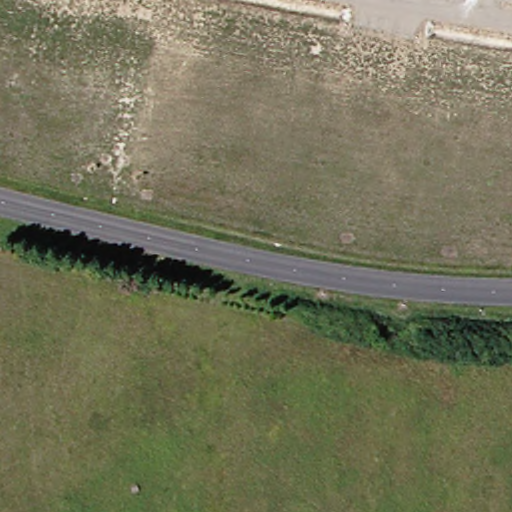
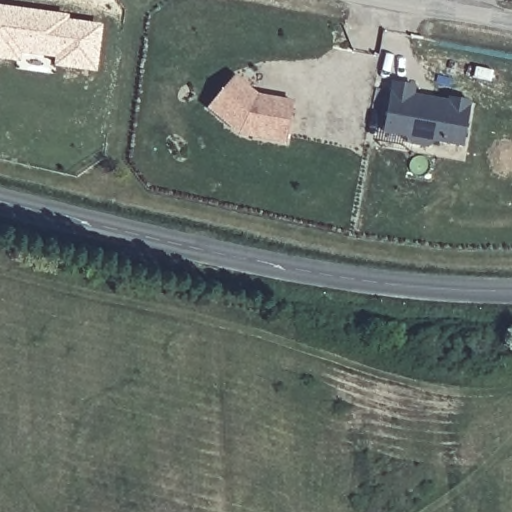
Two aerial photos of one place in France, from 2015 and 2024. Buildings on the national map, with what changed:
new [(53,68),(54,60),(48,59),(19,55),(18,63),(0,60),(0,11),(103,22),(97,74),(53,68)]
new [(236,79),(259,99),(296,105),(291,137),(245,128),(211,109),(236,79)]
new [(412,88),(410,97),(450,104),(451,100),(468,102),(460,145),(433,139),(426,146),(412,144),(411,152),(381,147),(393,85),(412,88)]

